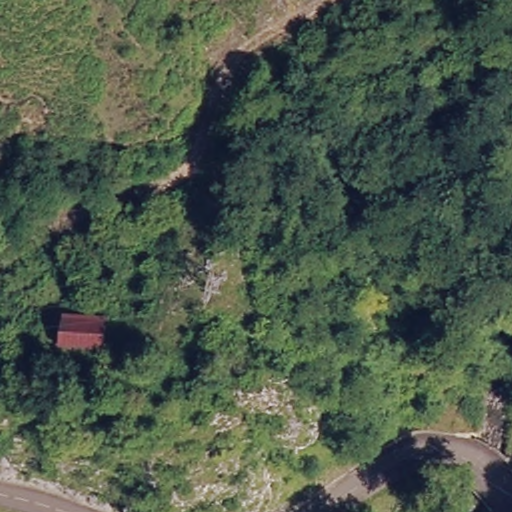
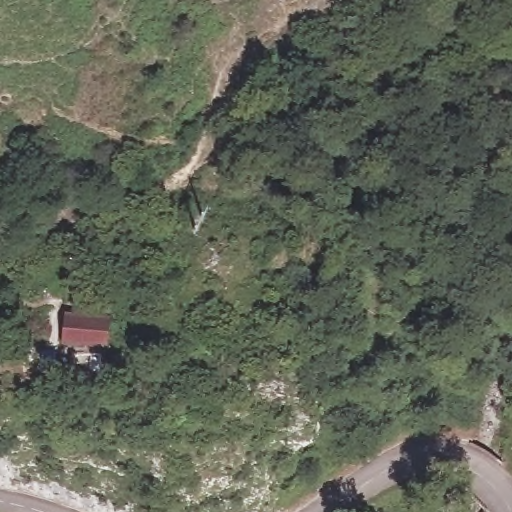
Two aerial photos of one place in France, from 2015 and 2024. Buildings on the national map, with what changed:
unchanged [(62,314),(111,316),(108,350),(62,346),(62,314)]

